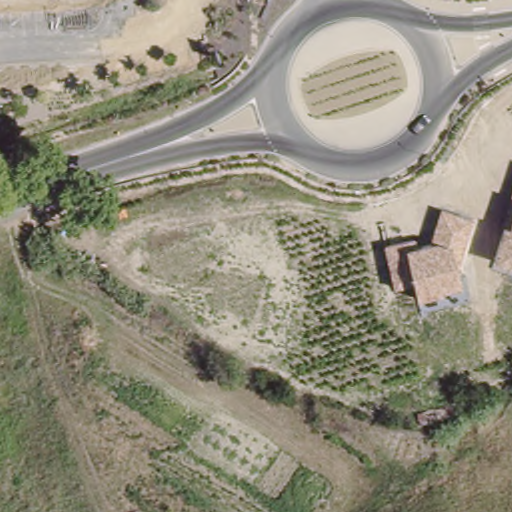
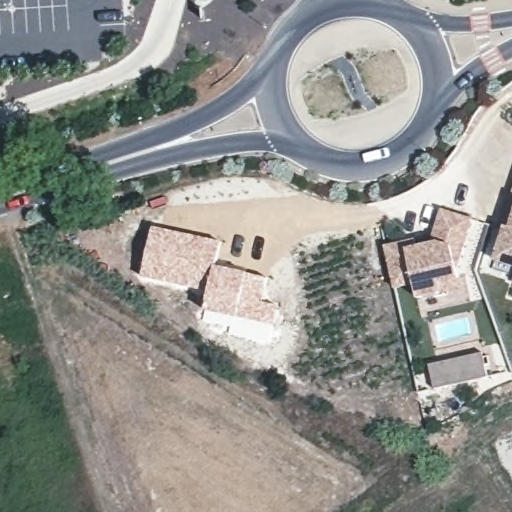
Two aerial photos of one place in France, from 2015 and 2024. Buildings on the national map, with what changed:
demolished [(99,0),(99,2),(0,9),(0,0),(99,0)]
unchanged [(497,259),(496,254),(504,225),(512,195),(512,268),(502,263),(497,259)]
unchanged [(417,300),(413,283),(394,288),(385,246),(416,239),(418,247),(431,243),(441,209),(474,220),(457,276),(459,280),(460,280),(462,290),(442,294),(417,300)]
new [(216,268),(268,278),(263,303),(277,306),(274,326),(206,311),(210,291),(143,276),(154,229),(221,243),(216,268)]
unchanged [(482,349),(488,374),(431,388),(425,362),(482,349)]

